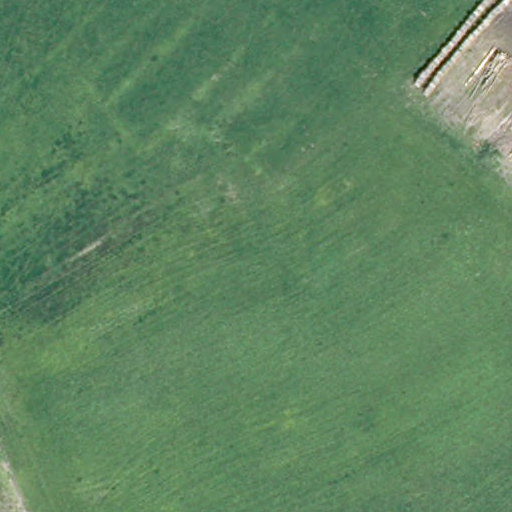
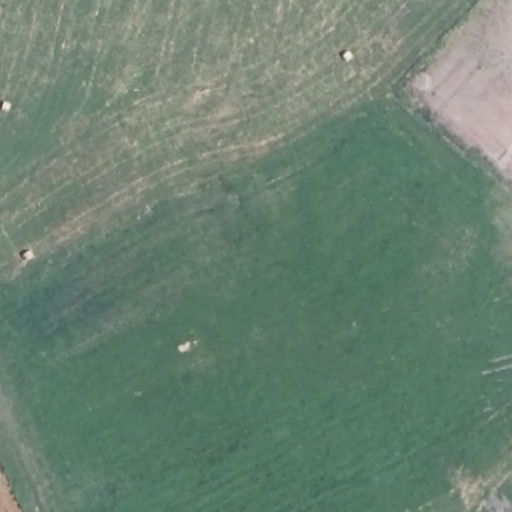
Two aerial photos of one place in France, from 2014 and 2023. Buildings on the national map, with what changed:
[]

